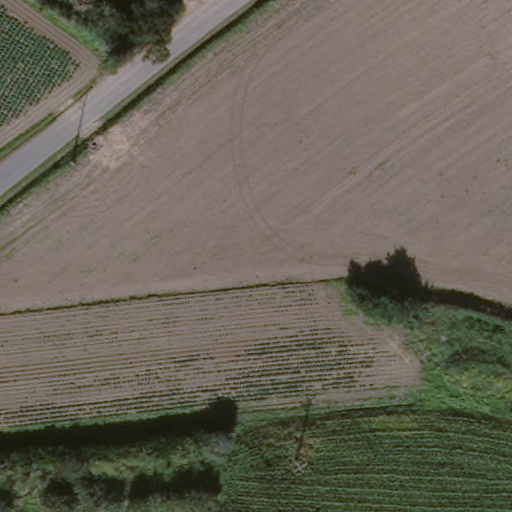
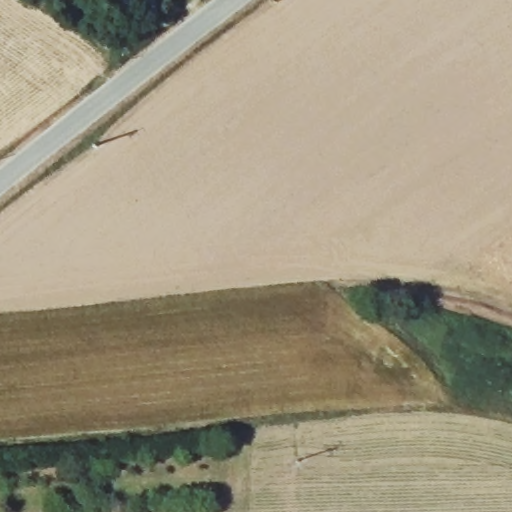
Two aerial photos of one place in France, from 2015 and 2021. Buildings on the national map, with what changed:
[]

